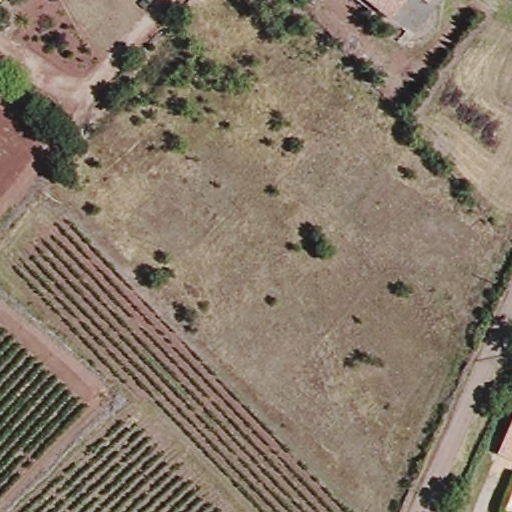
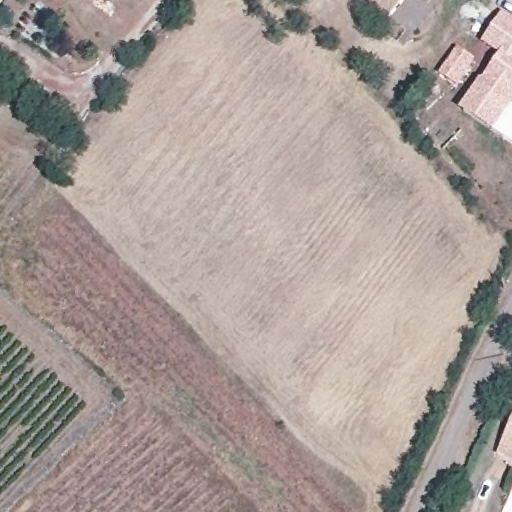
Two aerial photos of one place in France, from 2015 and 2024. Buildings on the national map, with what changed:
unchanged [(391,18),(367,0),(404,0),(391,18)]
new [(480,42),(502,11),(512,18),(512,107),(492,132),(459,109),(498,55),(480,42)]
new [(457,45),(477,60),(456,87),(438,73),(457,45)]
unchanged [(512,424),(512,455),(502,450),(512,424)]

